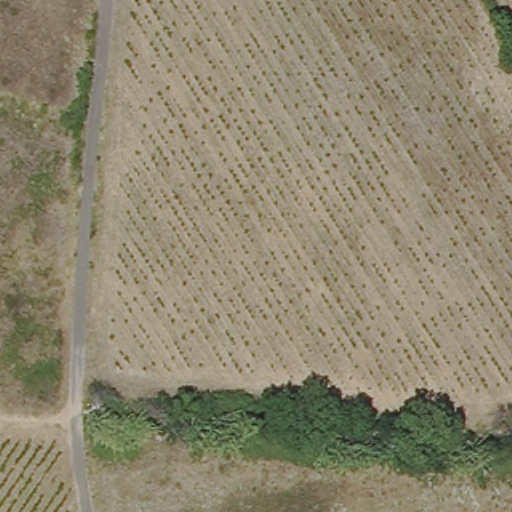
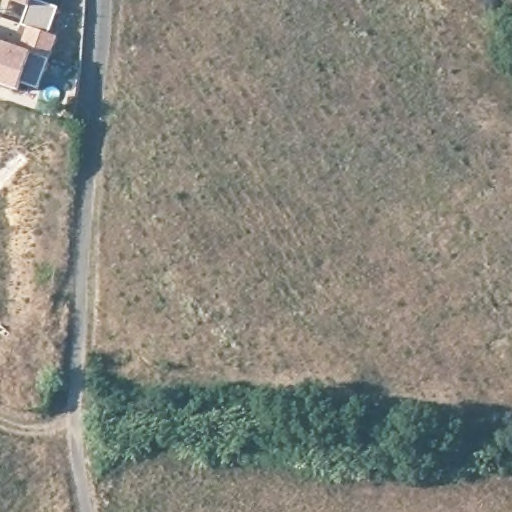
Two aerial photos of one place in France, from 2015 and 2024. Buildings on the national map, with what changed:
new [(25,36),(20,34),(28,6),(10,0),(33,0),(60,7),(50,34),(57,36),(39,88),(24,82),(21,90),(0,83),(0,42),(20,48),(25,36)]

